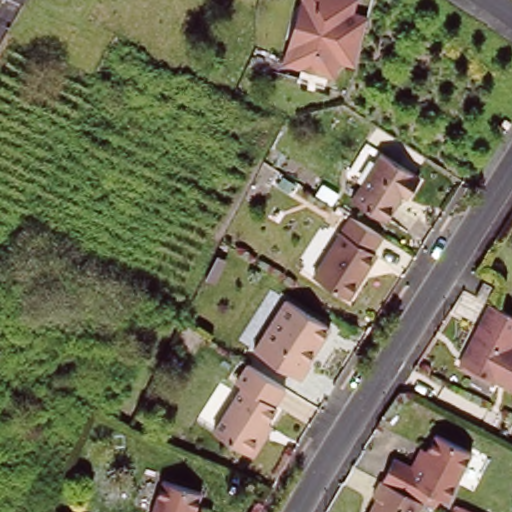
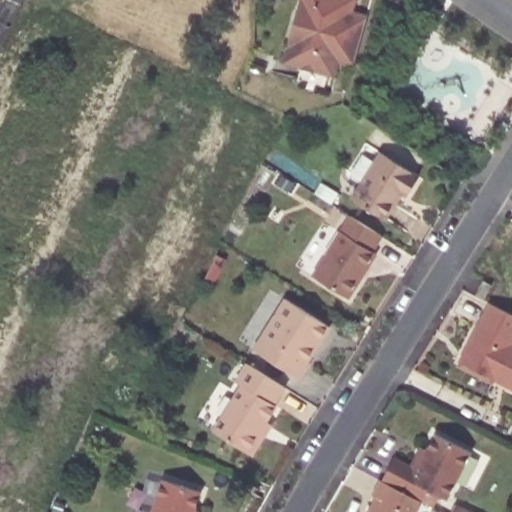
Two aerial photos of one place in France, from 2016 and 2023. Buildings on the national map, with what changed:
unchanged [(339,72),(290,58),(307,0),(360,0),(357,8),(372,12),(369,25),(358,62),(342,57),(339,72)]
unchanged [(381,149),(419,173),(407,191),(403,188),(384,219),(350,199),(381,149)]
unchanged [(385,234),(377,248),(382,252),(354,298),(315,275),(353,214),(385,234)]
unchanged [(269,272),(275,262),(286,269),(280,278),(269,272)]
unchanged [(477,295),(485,280),(498,287),(490,301),(477,295)]
unchanged [(304,355),(306,357),(297,371),(263,349),(295,300),(327,320),(304,355)]
unchanged [(466,353),(492,303),(512,313),(512,388),(465,363),(462,361),(466,353)]
unchanged [(255,455),(249,451),(215,429),(244,383),(236,378),(247,361),(285,386),(277,400),(280,402),(267,424),(273,428),(255,455)]
unchanged [(395,459),(418,470),(438,431),(474,450),(454,489),(449,486),(437,507),(427,502),(384,480),(395,459)]
unchanged [(162,477),(199,489),(193,506),(200,508),(198,512),(151,512),(162,477)]
unchanged [(427,502),(421,512),(375,512),(381,499),(375,496),(384,480),(427,502)]

